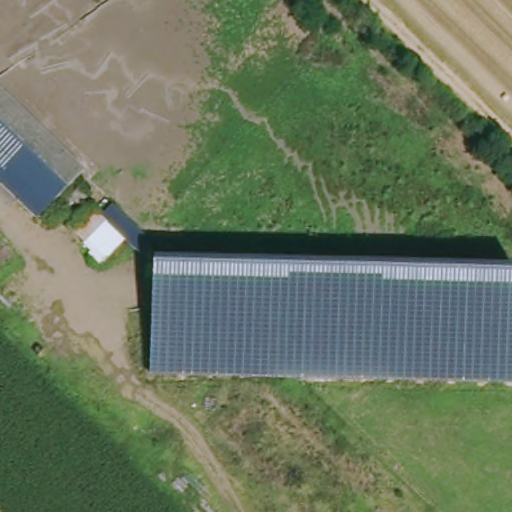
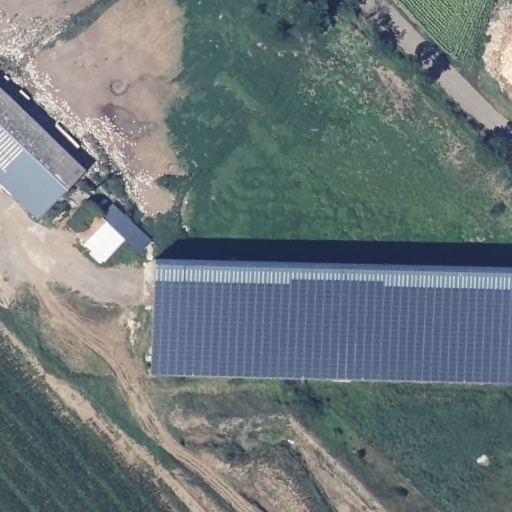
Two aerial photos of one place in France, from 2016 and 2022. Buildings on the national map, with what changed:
unchanged [(28,221),(14,209),(32,191),(0,160),(0,90),(82,168),(28,221)]
unchanged [(0,160),(32,191),(14,209),(0,195),(0,160)]
unchanged [(84,181),(93,192),(82,203),(70,194),(84,181)]
unchanged [(110,260),(102,252),(75,221),(95,203),(123,232),(130,240),(110,260)]
unchanged [(512,265),(512,370),(512,385),(146,378),(150,256),(512,265)]

